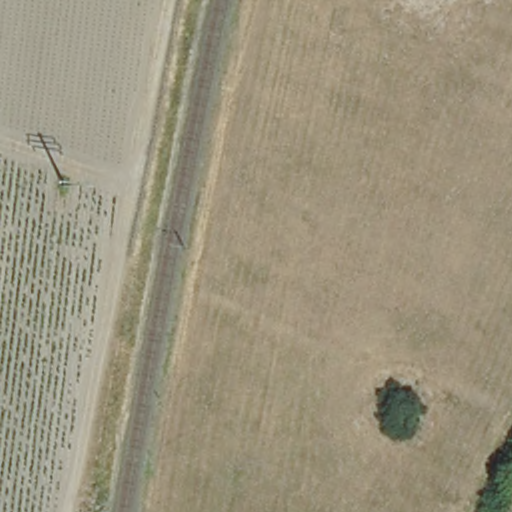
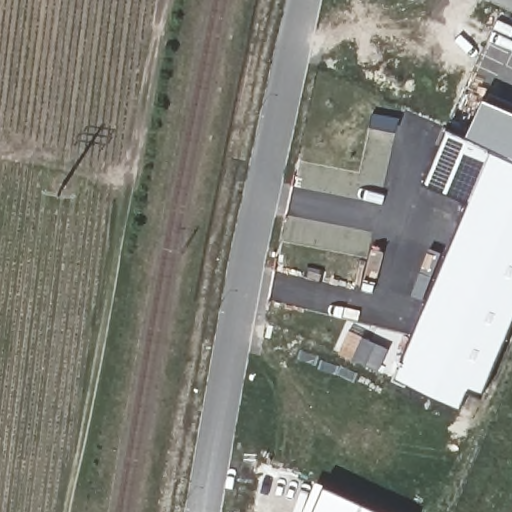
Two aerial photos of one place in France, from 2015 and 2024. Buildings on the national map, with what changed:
new [(425,182),(447,129),(466,137),(484,97),(512,110),(512,324),(482,395),(468,389),(460,407),(393,377),(468,201),(425,182)]
new [(383,512),(313,512),(324,485),(383,512)]

